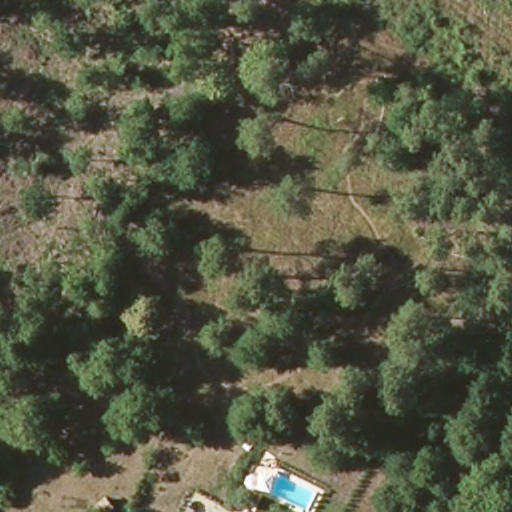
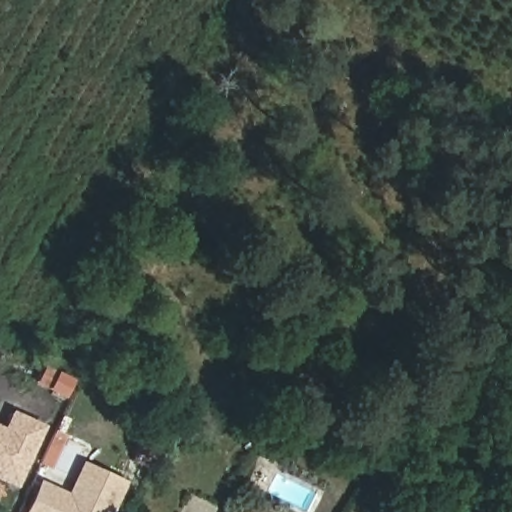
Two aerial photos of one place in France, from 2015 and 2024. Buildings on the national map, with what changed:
new [(11,409),(45,425),(16,487),(0,479),(0,425),(4,426),(11,409)]
new [(112,432),(127,440),(113,468),(99,462),(112,432)]
new [(127,480),(113,512),(24,512),(40,478),(68,491),(82,460),(127,480)]

